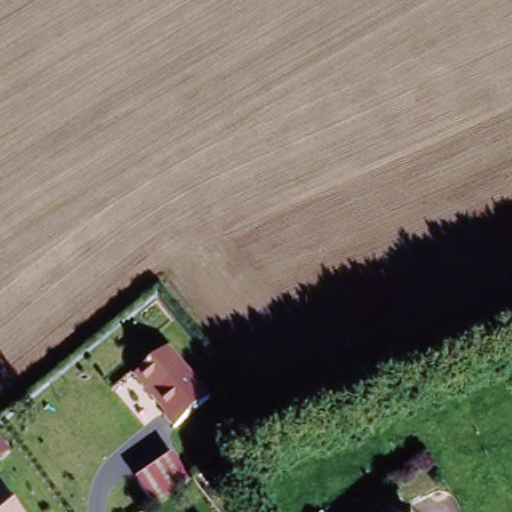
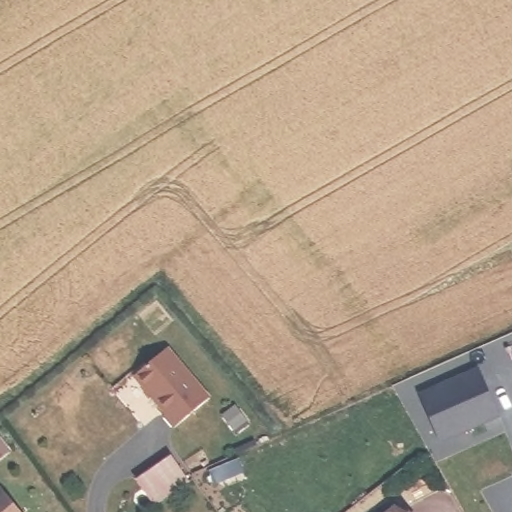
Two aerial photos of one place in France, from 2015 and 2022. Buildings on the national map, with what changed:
unchanged [(138,378),(172,350),(214,400),(178,428),(168,415),(168,414),(138,378)]
new [(500,419),(480,427),(478,423),(463,430),(465,434),(441,444),(422,399),(481,373),(500,419)]
unchanged [(28,512),(0,512),(0,488),(4,484),(28,512)]

